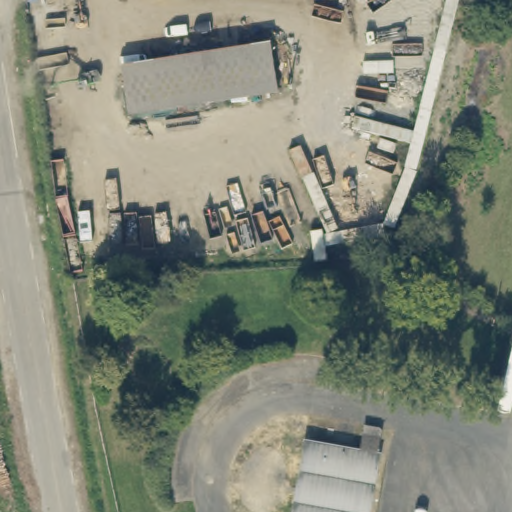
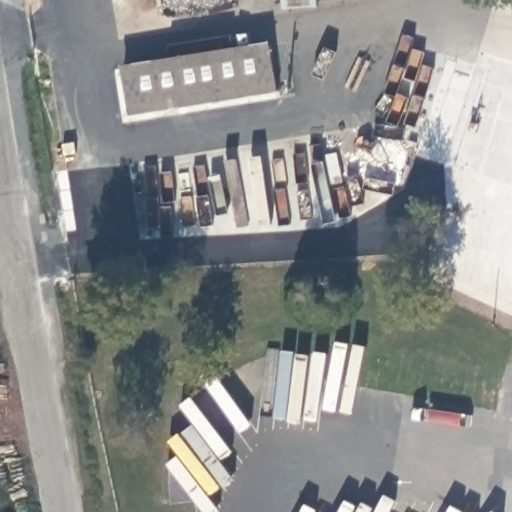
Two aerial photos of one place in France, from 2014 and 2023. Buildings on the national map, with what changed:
unchanged [(123,76),(271,52),(277,92),(129,116),(123,76)]
demolished [(307,442),(360,451),(364,427),(382,430),(377,455),(367,512),(295,512),(307,442)]

